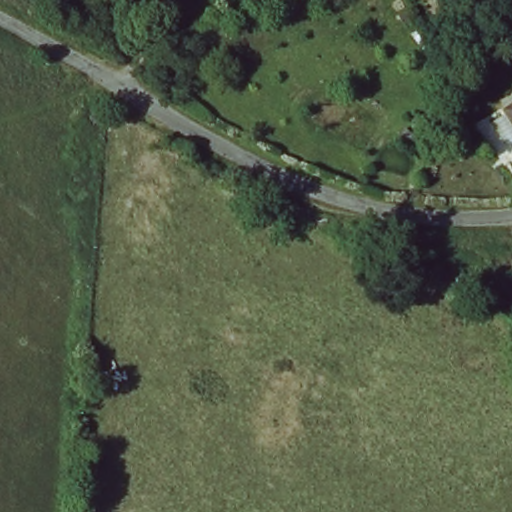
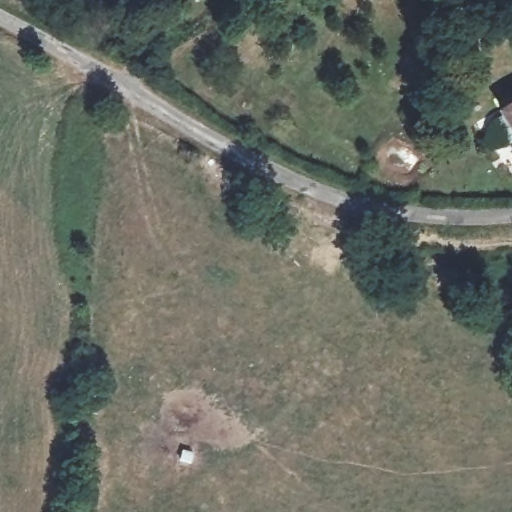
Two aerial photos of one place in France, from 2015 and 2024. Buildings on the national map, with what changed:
unchanged [(230,0),(224,4),(220,0),(230,0)]
unchanged [(512,103),(512,162),(486,118),(512,103)]

